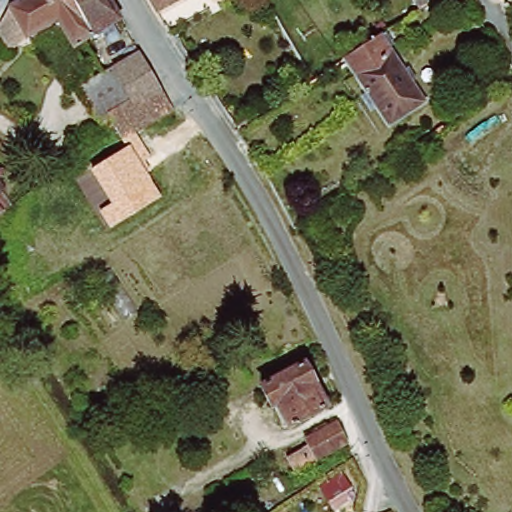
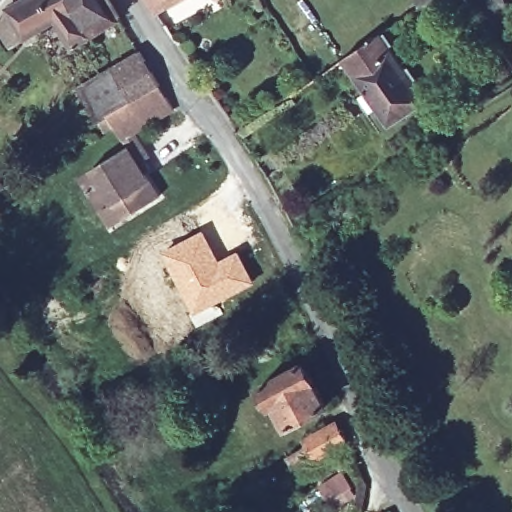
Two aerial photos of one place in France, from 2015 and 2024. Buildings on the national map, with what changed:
unchanged [(23,0),(113,0),(125,19),(79,46),(60,16),(35,34),(15,50),(0,28),(10,7),(23,0)]
unchanged [(157,8),(152,0),(171,0),(157,8)]
unchanged [(257,3),(255,0),(262,0),(257,3)]
unchanged [(424,5),(422,0),(431,0),(424,5)]
unchanged [(430,106),(392,131),(346,61),(385,36),(430,106)]
unchanged [(113,69),(140,53),(161,85),(135,102),(113,69)]
unchanged [(330,73),(322,62),(333,53),(341,64),(330,73)]
unchanged [(101,124),(79,90),(113,69),(135,102),(101,124)]
unchanged [(108,133),(101,124),(135,102),(161,85),(177,109),(128,138),(118,126),(108,133)]
unchanged [(150,157),(140,163),(161,196),(110,229),(99,213),(111,204),(91,170),(125,149),(122,141),(128,138),(136,133),(150,157)]
unchanged [(0,196),(2,195),(12,208),(0,217),(0,196)]
new [(204,229),(220,259),(237,250),(255,282),(217,304),(223,314),(197,328),(190,314),(195,312),(162,251),(204,229)]
unchanged [(330,403),(295,426),(278,401),(275,403),(265,387),(301,361),(330,403)]
unchanged [(342,424),(355,442),(305,475),(298,463),(315,450),(310,444),(342,424)]

